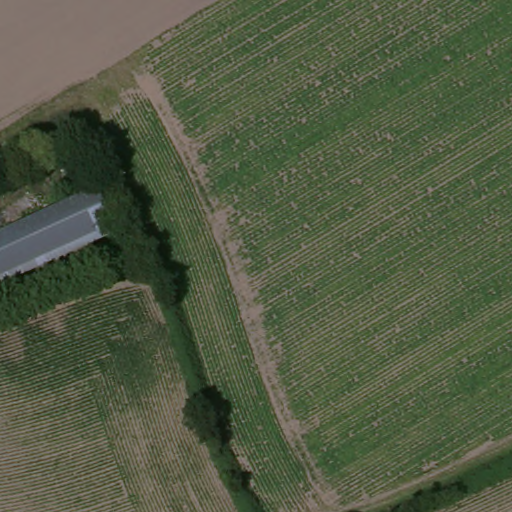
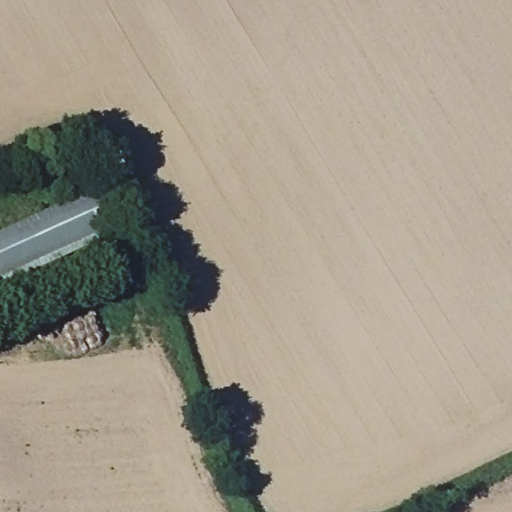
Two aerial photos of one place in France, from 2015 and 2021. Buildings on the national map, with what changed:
unchanged [(97,190),(115,229),(0,279),(0,233),(97,190)]

